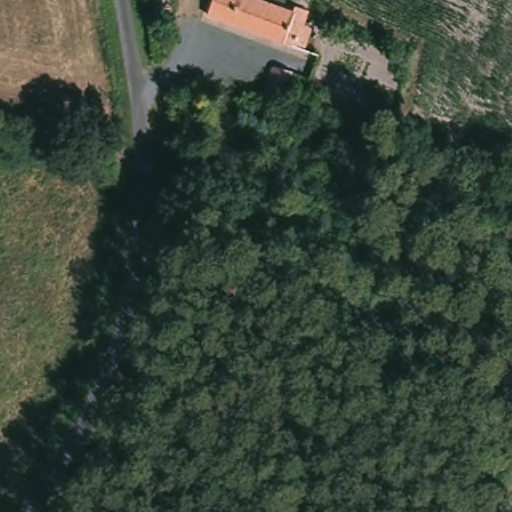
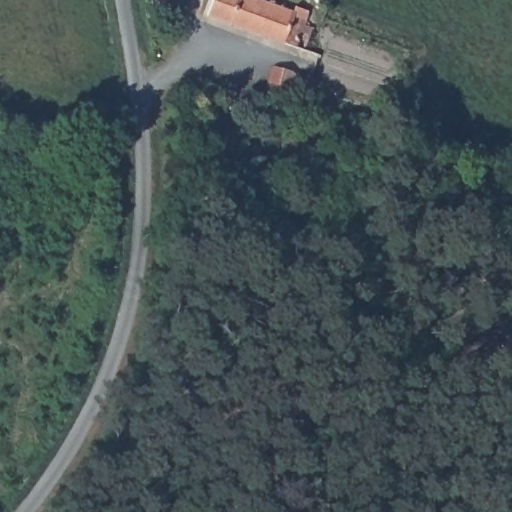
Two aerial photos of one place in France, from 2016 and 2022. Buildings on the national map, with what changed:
unchanged [(290,4),(303,9),(301,15),(305,16),(295,47),(200,14),(205,0),(256,0),(288,11),(290,4)]
unchanged [(282,76),(276,97),(254,90),(260,68),(282,76)]

